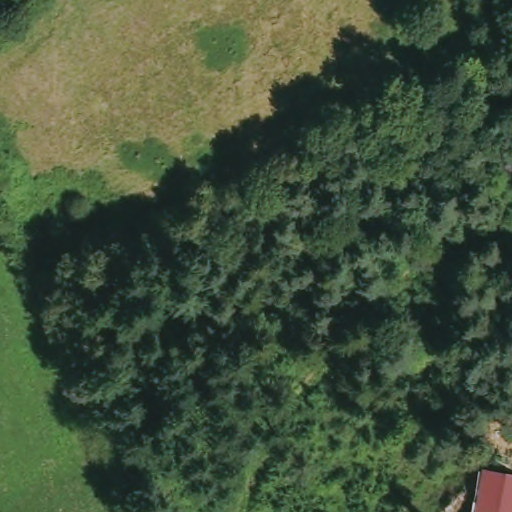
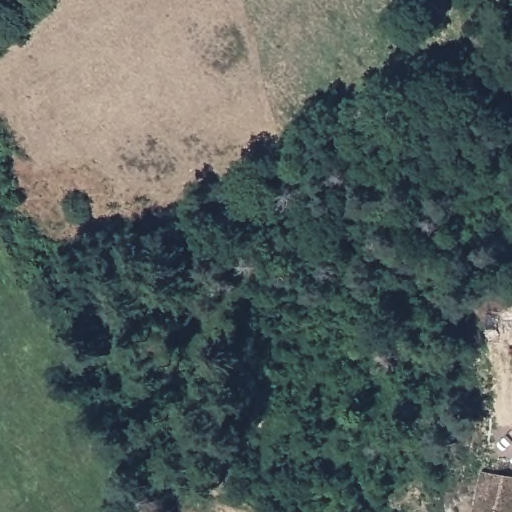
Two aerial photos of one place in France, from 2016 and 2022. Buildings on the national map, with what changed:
unchanged [(483,474),(512,478),(512,512),(475,512),(483,474)]

